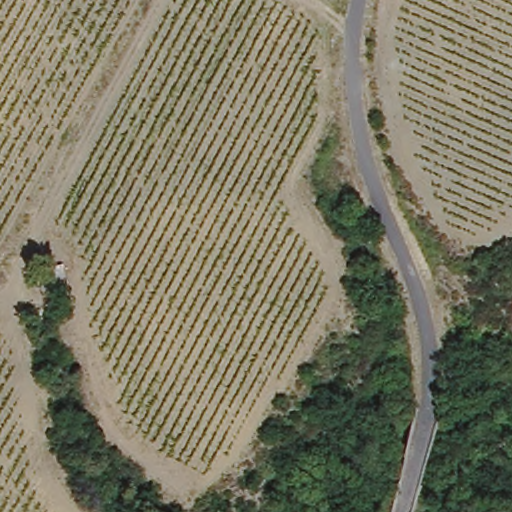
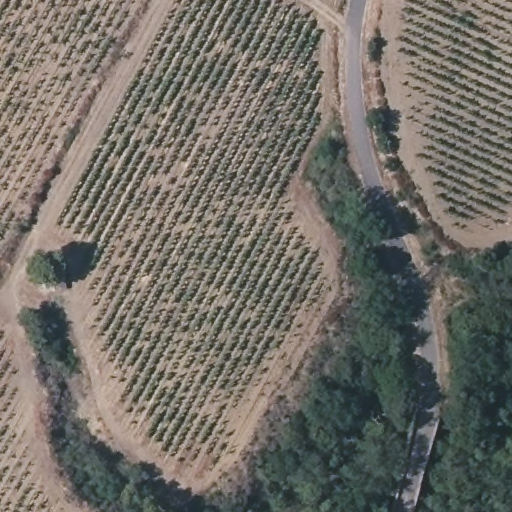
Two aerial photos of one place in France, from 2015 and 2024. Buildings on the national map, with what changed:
unchanged [(38,272),(60,268),(65,291),(42,295),(38,272)]

